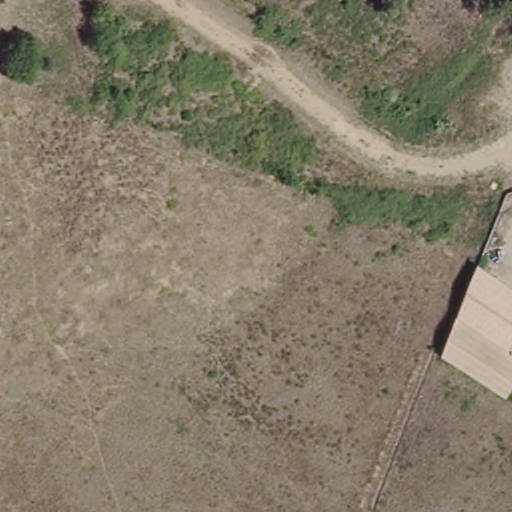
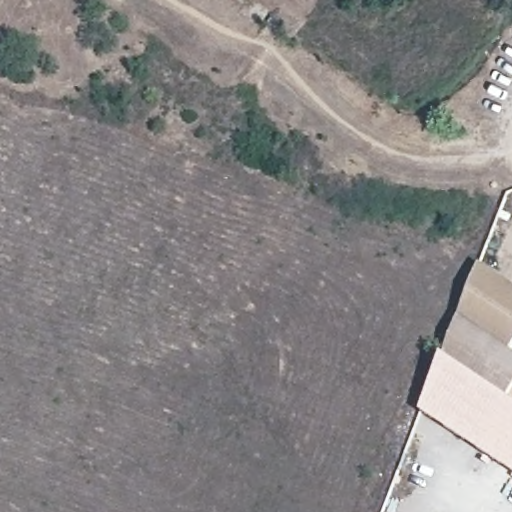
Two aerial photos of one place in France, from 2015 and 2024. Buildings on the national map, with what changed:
unchanged [(512,284),(512,347),(510,351),(512,352),(512,388),(506,398),(446,354),(483,264),(512,284)]
new [(512,402),(512,473),(420,411),(446,354),(506,398),(512,402)]
new [(512,388),(512,402),(506,398),(512,388)]

